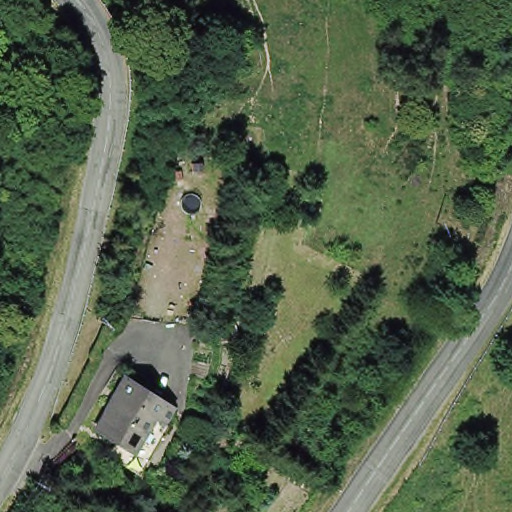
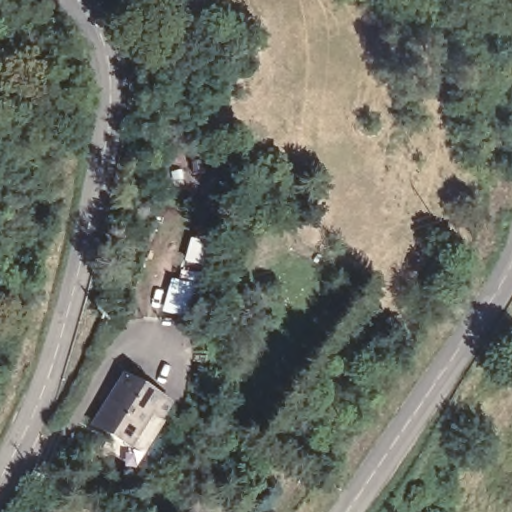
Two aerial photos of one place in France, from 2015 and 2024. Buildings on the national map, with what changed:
unchanged [(176,407),(173,412),(165,426),(157,418),(135,457),(114,446),(118,438),(100,427),(123,387),(127,381),(176,407)]

